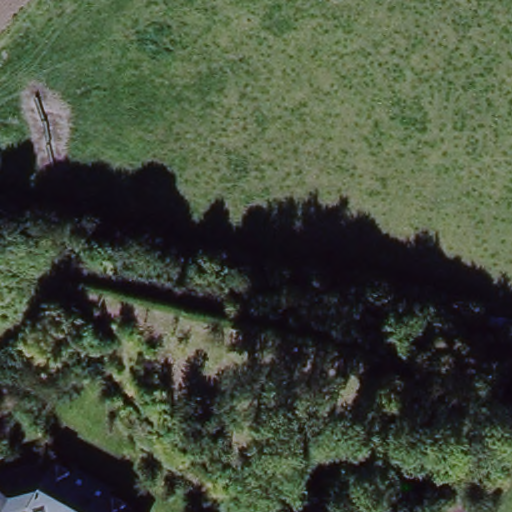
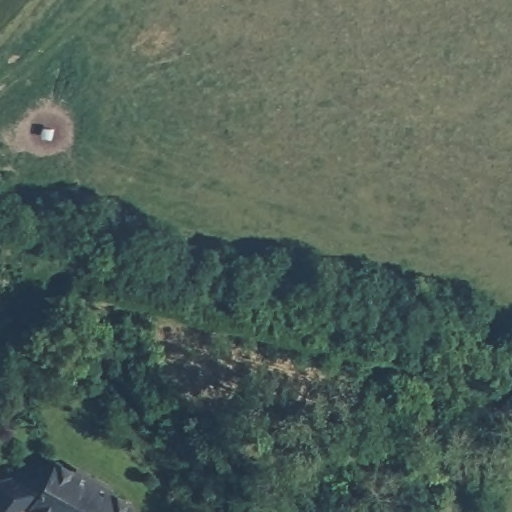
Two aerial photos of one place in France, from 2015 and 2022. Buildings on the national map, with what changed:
unchanged [(4,512),(0,512),(0,473),(26,468),(46,482),(60,462),(80,476),(84,470),(112,490),(110,495),(133,511),(135,512),(43,512),(35,506),(4,512)]

